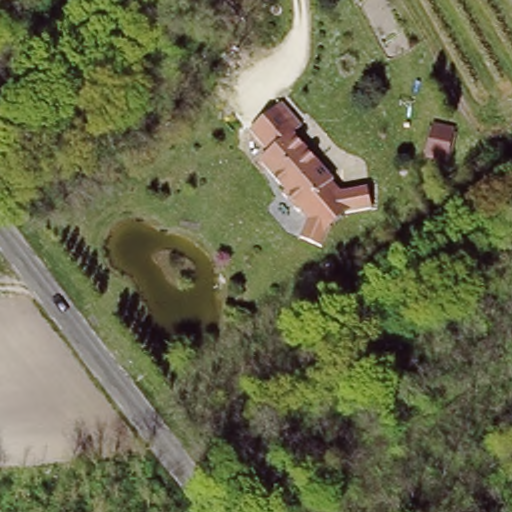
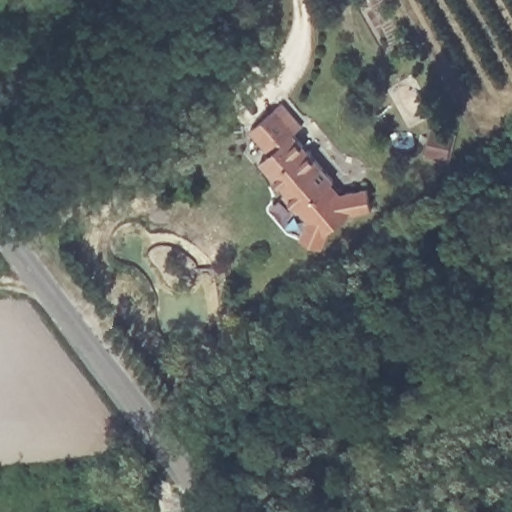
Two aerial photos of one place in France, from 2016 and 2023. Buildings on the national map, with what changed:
unchanged [(294,137),(344,192),(369,189),(373,212),(349,216),(336,229),(328,251),(303,243),(309,220),(262,163),(268,156),(248,132),(281,103),(303,127),(294,137)]

